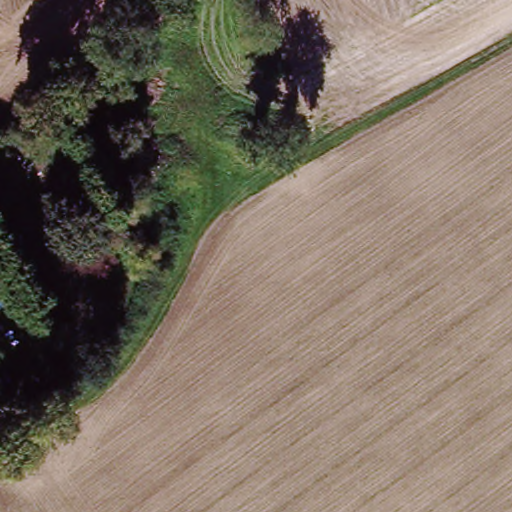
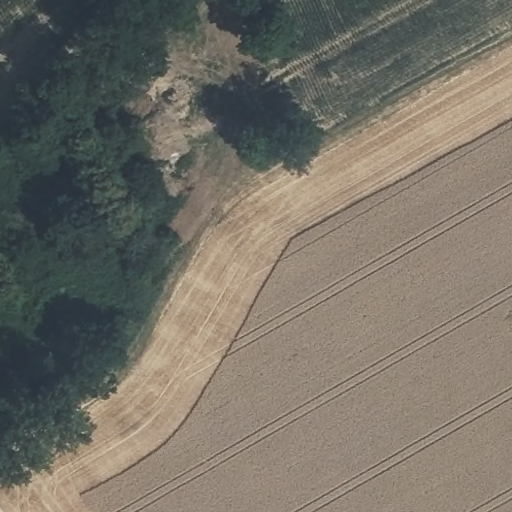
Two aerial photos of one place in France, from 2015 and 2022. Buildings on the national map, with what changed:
unchanged [(75,187),(84,205),(68,210),(60,194),(75,187)]
unchanged [(0,292),(0,286),(2,291),(0,292)]

